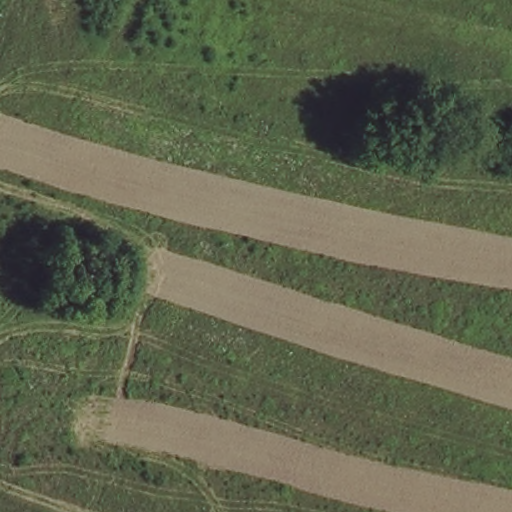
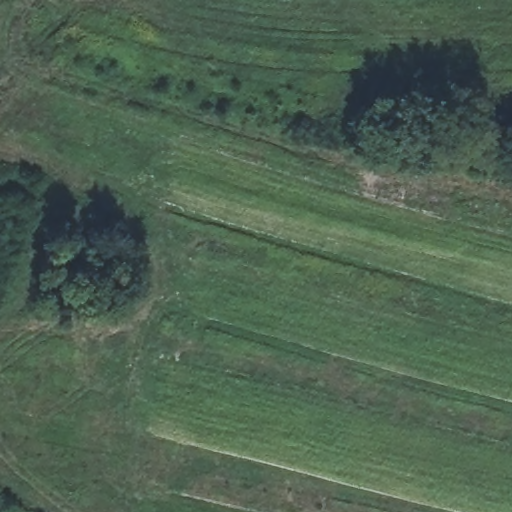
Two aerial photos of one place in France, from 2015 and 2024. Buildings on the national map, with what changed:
unchanged [(119,235),(157,237),(153,275),(114,272),(119,235)]

